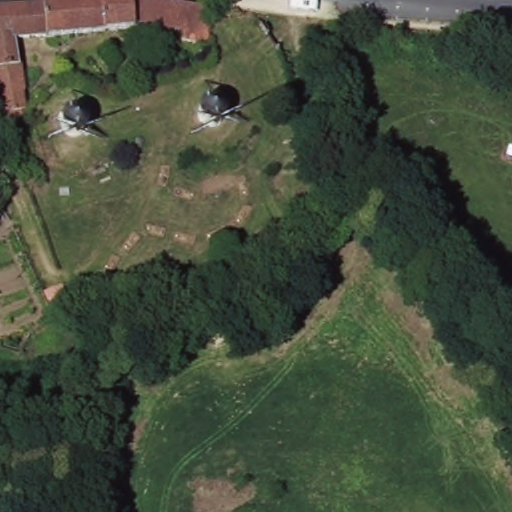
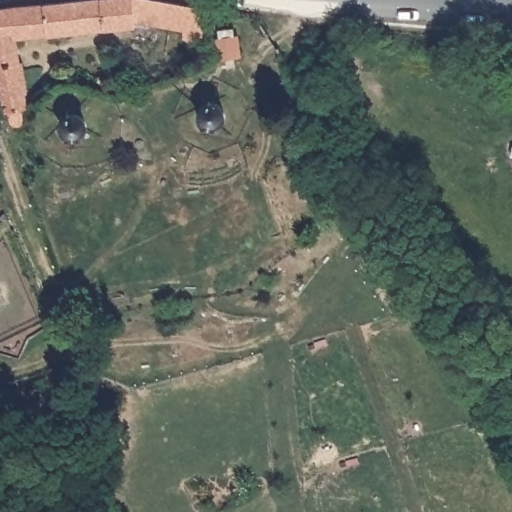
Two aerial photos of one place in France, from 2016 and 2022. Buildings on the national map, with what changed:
unchanged [(55,0),(172,0),(211,7),(209,37),(184,36),(185,27),(138,20),(138,24),(78,27),(17,30),(22,57),(24,57),(29,85),(27,85),(27,104),(7,108),(2,88),(10,86),(4,62),(0,62),(0,4),(27,2),(55,0)]
unchanged [(62,109),(46,84),(61,75),(77,99),(62,109)]
unchanged [(212,127),(205,125),(202,119),(203,111),(210,106),(216,105),(222,107),(226,112),(226,120),(220,126),(212,127)]
unchanged [(69,130),(67,123),(70,117),(76,113),(82,113),(89,118),(90,127),(85,133),(76,136),(69,130)]

